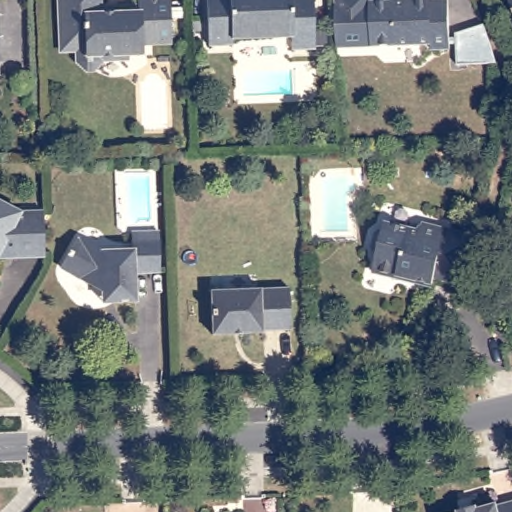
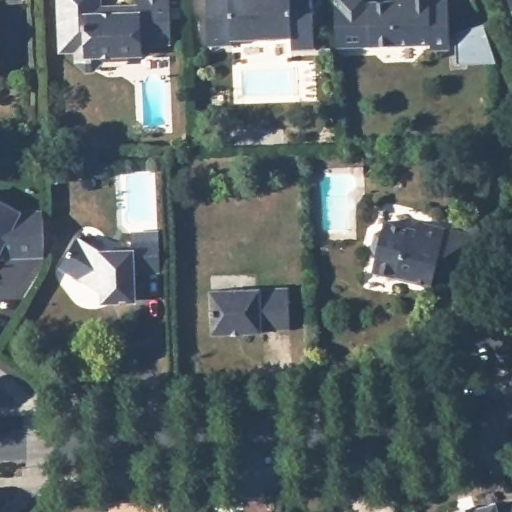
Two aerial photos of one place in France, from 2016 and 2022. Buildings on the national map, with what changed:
unchanged [(162,0),(164,41),(134,42),(134,52),(122,52),(122,57),(111,58),(106,54),(94,54),(94,61),(86,69),(79,69),(71,61),(70,49),(55,49),(54,0),(94,0),(94,7),(109,7),(130,5),(130,0),(162,0)]
unchanged [(290,48),(290,36),(229,37),(229,43),(205,44),(205,0),(311,0),(312,48),(290,48)]
unchanged [(333,5),(333,0),(369,0),(369,6),(410,5),(410,0),(429,0),(429,4),(446,4),(448,52),(431,52),(430,47),(335,50),(333,5)]
unchanged [(506,0),(512,0),(512,15),(506,0)]
unchanged [(495,66),(455,67),(454,36),(482,27),(495,66)]
unchanged [(41,215),(42,259),(10,260),(10,254),(0,254),(0,206),(19,216),(41,215)]
unchanged [(419,291),(359,276),(363,260),(357,252),(359,237),(368,234),(370,222),(403,230),(409,226),(452,237),(456,221),(469,224),(465,240),(453,289),(421,281),(419,291)]
unchanged [(101,299),(101,293),(58,266),(76,237),(99,252),(131,251),(131,241),(157,240),(159,273),(133,273),(134,303),(115,303),(101,305),(101,299)]
unchanged [(290,287),(291,328),(263,329),(263,333),(242,333),(242,330),(233,330),(233,333),(212,334),(211,290),(290,287)]
unchanged [(499,321),(510,332),(503,340),(491,327),(499,321)]
unchanged [(457,512),(477,506),(477,510),(496,505),(496,507),(512,503),(512,512),(458,512),(457,512)]

